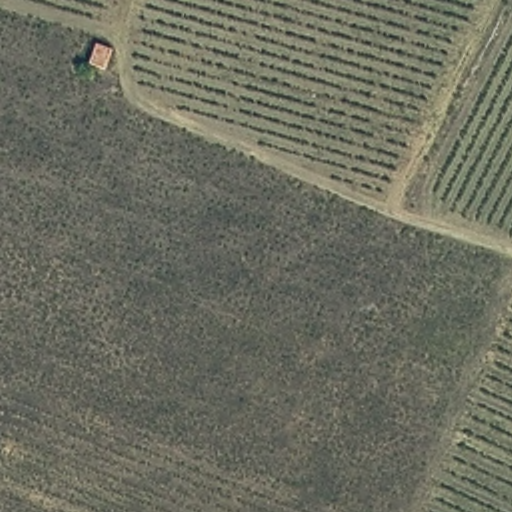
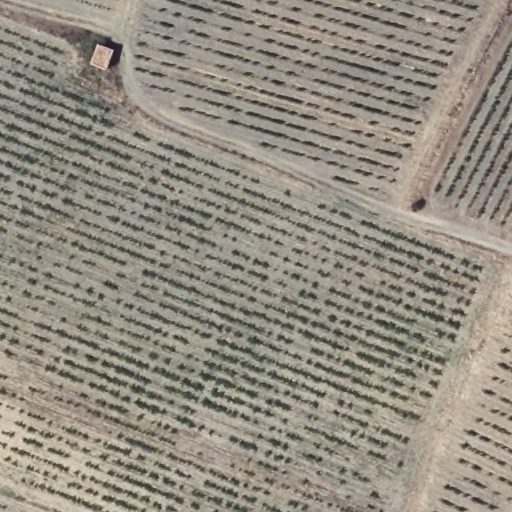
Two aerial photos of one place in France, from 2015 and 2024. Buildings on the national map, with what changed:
unchanged [(94,42),(111,49),(105,70),(88,63),(94,42)]

